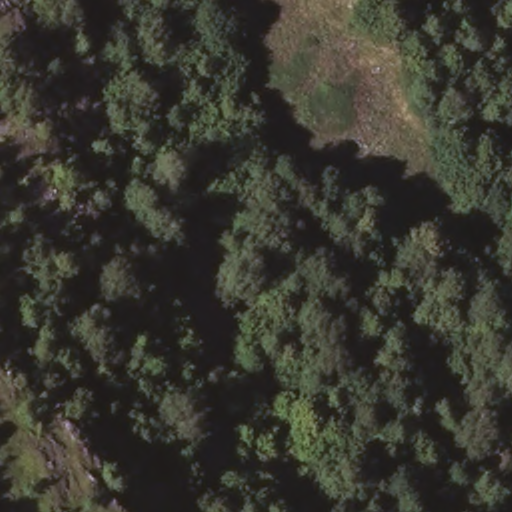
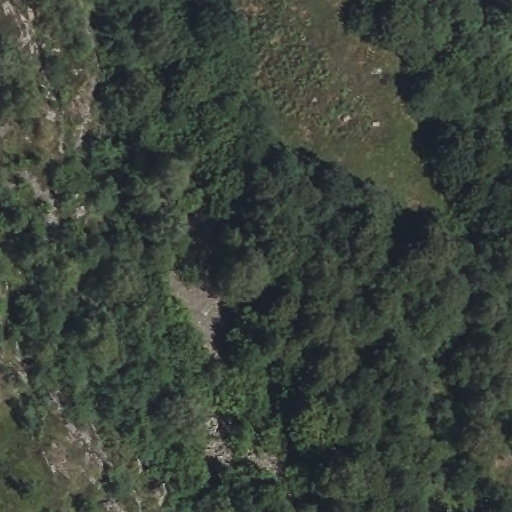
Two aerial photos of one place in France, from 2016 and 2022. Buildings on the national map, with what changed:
[]

